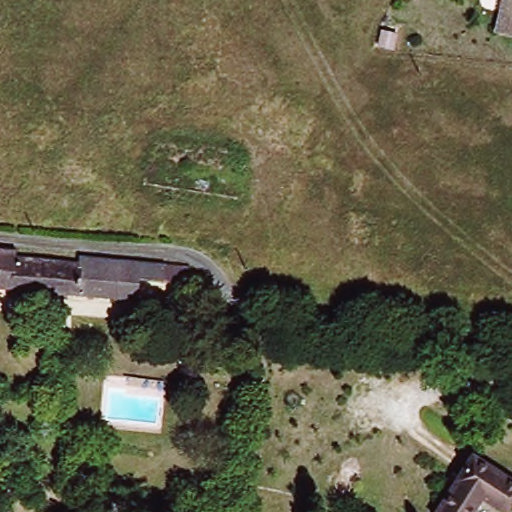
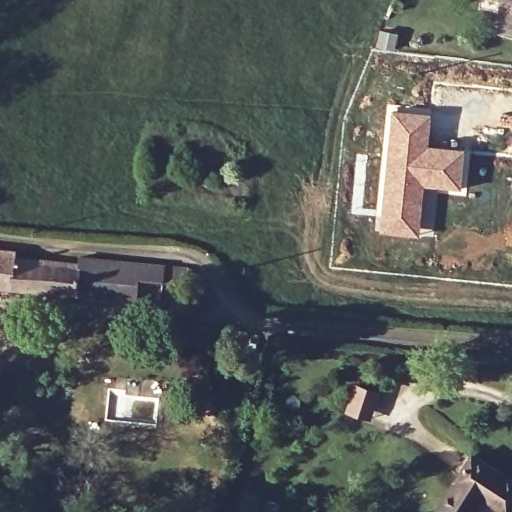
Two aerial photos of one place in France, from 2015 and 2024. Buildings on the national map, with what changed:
unchanged [(500,0),(512,0),(512,40),(492,36),(500,0)]
new [(396,111),(432,115),(428,147),(465,151),(461,188),(425,184),(421,219),(385,215),(396,111)]
unchanged [(139,273),(137,295),(0,282),(0,246),(15,247),(15,254),(80,260),(80,252),(188,263),(187,277),(139,273)]
unchanged [(472,512),(431,512),(470,453),(512,481),(512,506),(508,512),(502,512),(481,498),(472,512)]

